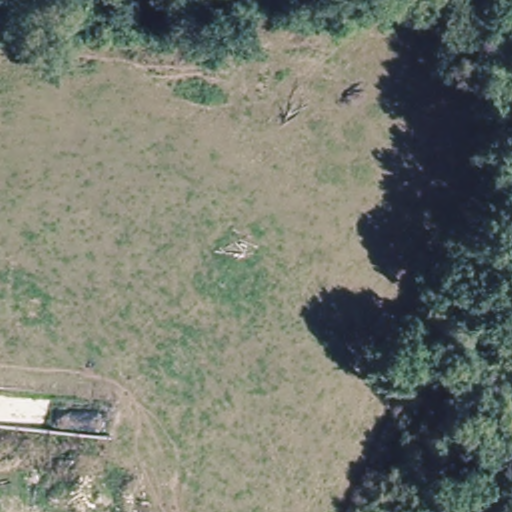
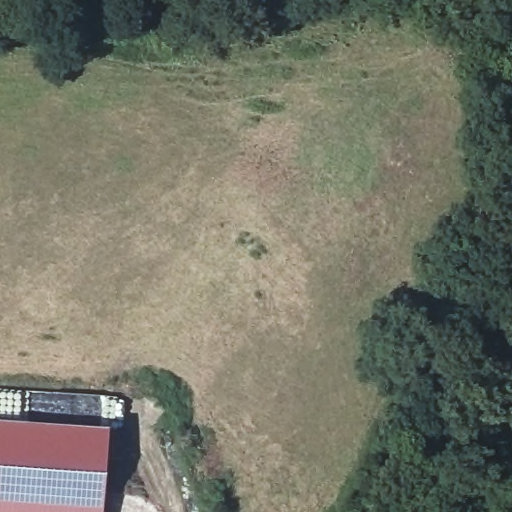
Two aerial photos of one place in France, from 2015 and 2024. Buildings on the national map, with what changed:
new [(108,430),(102,512),(0,512),(0,423),(108,430)]

